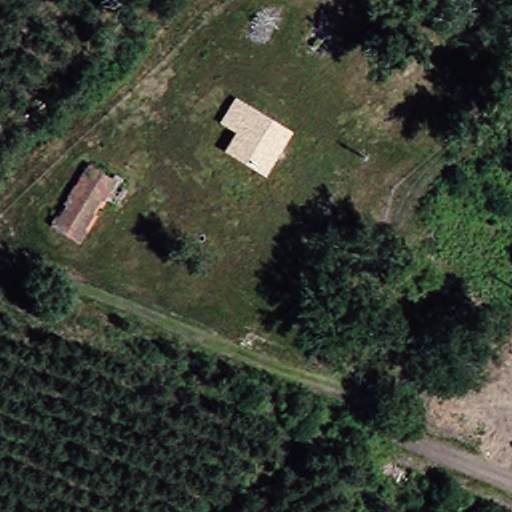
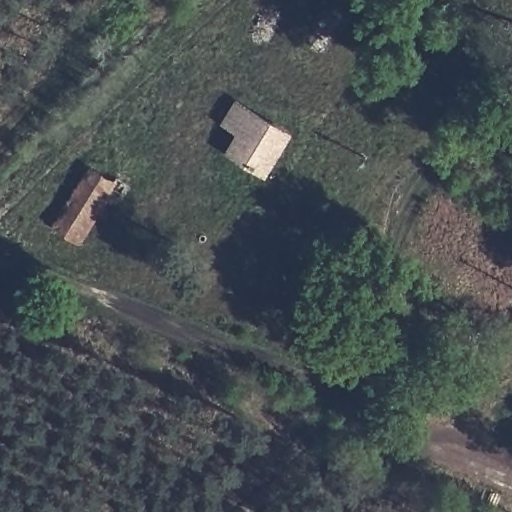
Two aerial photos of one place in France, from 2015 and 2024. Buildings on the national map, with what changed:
unchanged [(232,142),(252,108),(287,129),(274,163),(232,142)]
unchanged [(93,236),(66,223),(83,184),(92,165),(112,175),(103,197),(93,236)]

